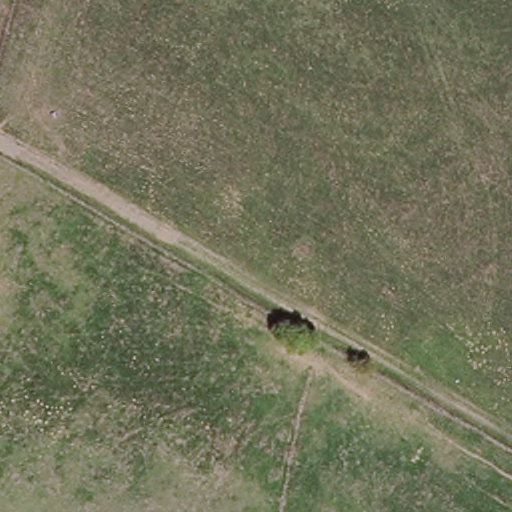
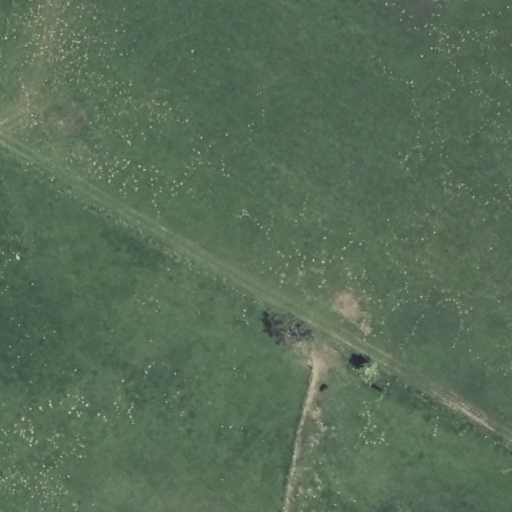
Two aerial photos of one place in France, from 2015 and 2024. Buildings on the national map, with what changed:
[]

